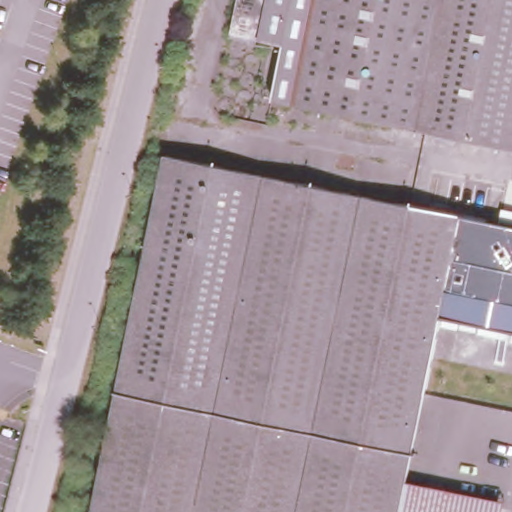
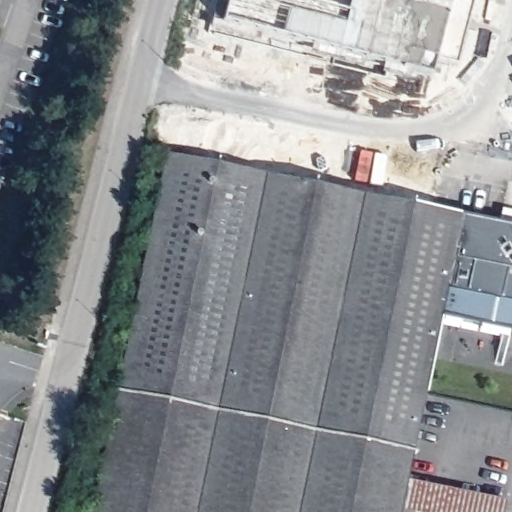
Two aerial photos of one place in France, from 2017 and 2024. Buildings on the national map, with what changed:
new [(226,0),(472,0),(455,65),(432,62),(429,77),(220,23),(226,0)]
demolished [(273,99),(281,59),(257,54),(261,35),(232,29),(238,0),(502,0),(467,137),(273,99)]
demolished [(467,137),(502,0),(512,0),(512,145),(467,137)]
unchanged [(512,224),(512,327),(439,312),(407,477),(505,500),(502,512),(411,512),(404,510),(403,512),(90,512),(162,150),(512,224)]

